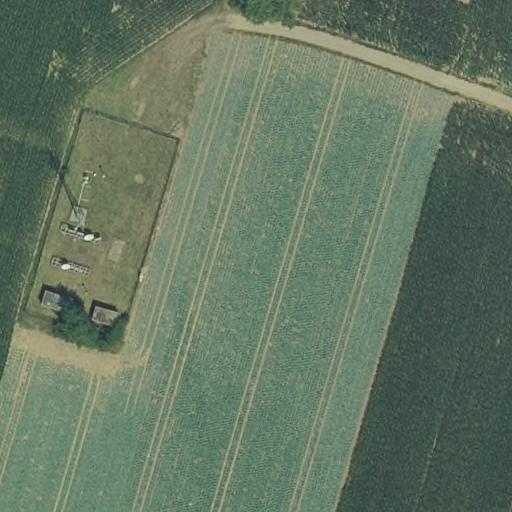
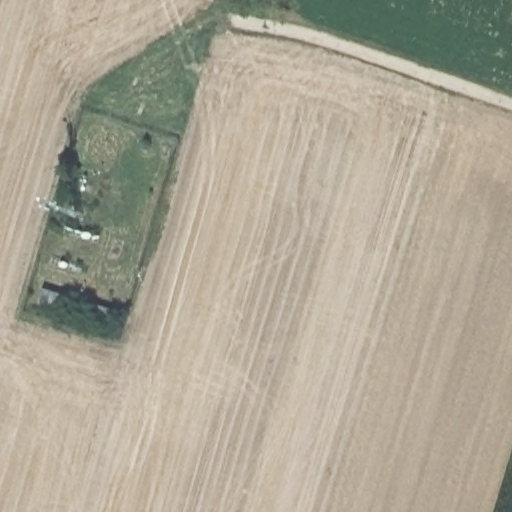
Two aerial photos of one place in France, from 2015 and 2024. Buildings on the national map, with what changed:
unchanged [(46,290),(72,298),(68,311),(42,303),(46,290)]
unchanged [(96,305),(119,312),(114,325),(92,318),(96,305)]

